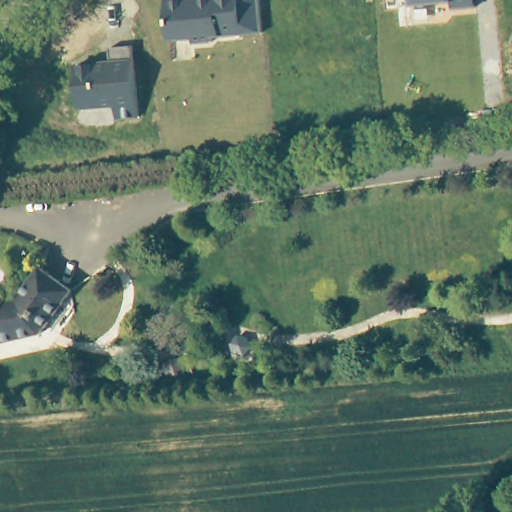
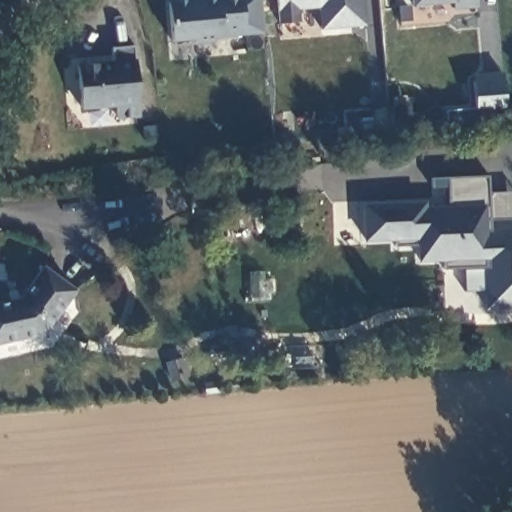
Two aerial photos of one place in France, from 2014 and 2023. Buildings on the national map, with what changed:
unchanged [(213,43),(193,45),(192,39),(168,41),(166,0),(258,0),(262,33),(212,37),(213,43)]
new [(320,30),(317,9),(301,11),(302,22),(279,23),(277,0),(365,0),(367,25),(320,30)]
unchanged [(452,8),(452,3),(409,6),(408,0),(473,0),(474,6),(452,8)]
unchanged [(140,118),(116,121),(114,106),(76,109),(73,65),(110,61),(109,49),(133,46),(140,118)]
new [(505,108),(475,110),(473,75),(501,72),(505,108)]
new [(488,219),(488,230),(512,228),(512,309),(485,311),(484,292),(464,293),(464,269),(444,270),(444,262),(417,263),(417,247),(394,248),(395,241),(363,242),(361,204),(425,201),(426,208),(448,209),(449,188),(432,188),(432,179),(448,179),(487,177),(487,193),(512,192),(512,218),(488,219)]
unchanged [(43,331),(0,341),(0,297),(19,293),(38,262),(75,286),(43,331)]

